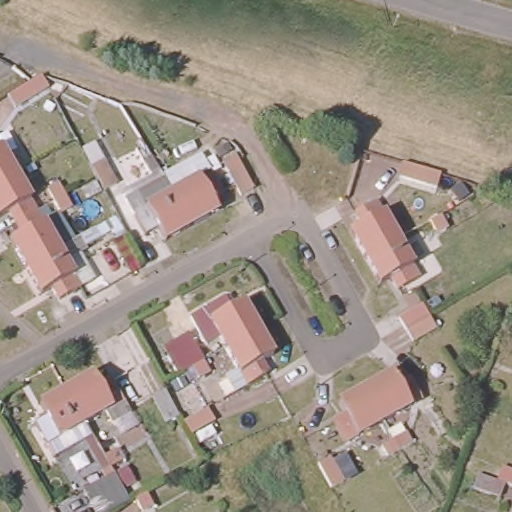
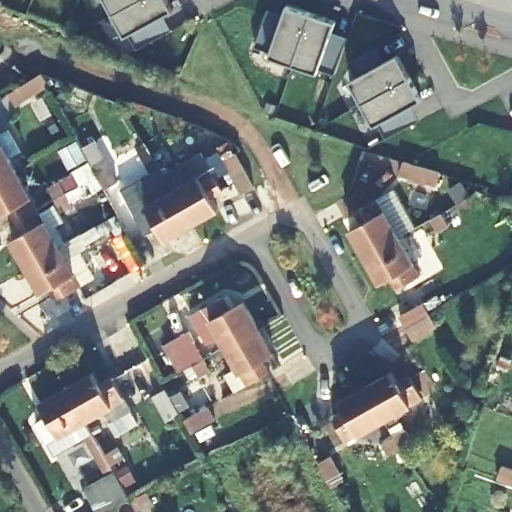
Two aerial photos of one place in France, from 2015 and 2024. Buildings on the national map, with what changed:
unchanged [(16,4),(14,3),(16,0),(19,0),(16,4)]
new [(171,8),(164,13),(170,30),(138,47),(128,32),(125,34),(108,0),(167,0),(171,8)]
new [(333,22),(331,31),(346,36),(334,70),(319,64),(316,71),(273,54),(286,8),(333,22)]
new [(351,81),(396,56),(419,97),(411,103),(418,118),(386,136),(379,120),(374,122),(351,81)]
unchanged [(42,166),(38,157),(33,149),(47,141),(52,149),(56,157),(42,166)]
unchanged [(0,145),(15,170),(0,179),(0,145)]
unchanged [(145,158),(153,154),(161,149),(169,164),(161,169),(153,173),(145,158)]
unchanged [(187,224),(168,191),(196,175),(208,168),(219,189),(207,196),(214,209),(187,224)]
unchanged [(24,233),(17,220),(10,209),(0,215),(0,179),(15,170),(30,197),(38,209),(44,221),(59,247),(27,266),(12,240),(24,233)]
unchanged [(130,212),(143,205),(168,191),(187,224),(161,238),(154,226),(142,233),(130,212)]
unchanged [(368,254),(352,228),(364,221),(358,210),(378,198),(385,210),(400,236),(368,254)]
unchanged [(428,233),(423,224),(418,216),(433,208),(437,215),(442,224),(428,233)]
unchanged [(86,243),(82,235),(78,227),(91,219),(96,226),(101,234),(86,243)]
unchanged [(402,288),(394,275),(383,281),(368,254),(400,236),(416,264),(423,276),(402,288)]
unchanged [(62,298),(54,285),(43,293),(27,266),(59,247),(75,274),(83,286),(62,298)]
unchanged [(260,326),(227,344),(211,318),(205,307),(225,295),(232,307),(244,299),(260,326)]
unchanged [(249,383),(242,371),(227,344),(260,326),(275,351),(261,359),(269,372),(249,383)]
unchanged [(196,374),(190,365),(185,356),(199,348),(204,357),(209,365),(196,374)]
unchanged [(363,386),(389,370),(396,382),(407,376),(419,397),(407,403),(381,419),(363,386)]
unchanged [(68,388),(95,374),(101,386),(114,379),(124,399),(113,405),(86,420),(68,388)]
unchanged [(330,420),(343,413),(336,401),(363,386),(381,419),(354,434),(342,441),(330,420)]
unchanged [(93,433),(53,455),(35,422),(48,415),(41,403),(68,388),(86,420),(93,433)]
unchanged [(389,445),(398,440),(407,435),(416,451),(407,456),(398,461),(389,445)]
unchanged [(90,447),(98,442),(108,437),(116,452),(107,457),(98,462),(90,447)]
unchanged [(314,449),(327,442),(340,466),(326,473),(314,449)]
unchanged [(101,512),(86,486),(115,471),(131,499),(107,512),(101,512)]
unchanged [(498,494),(473,485),(478,471),(504,480),(498,494)]

